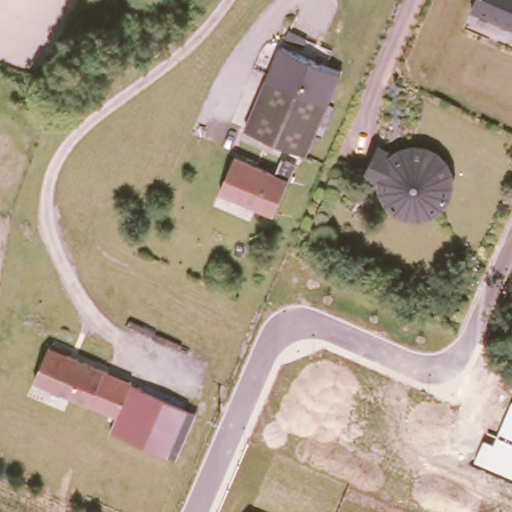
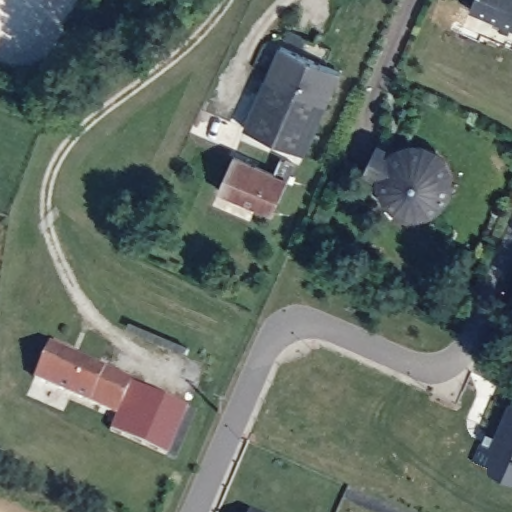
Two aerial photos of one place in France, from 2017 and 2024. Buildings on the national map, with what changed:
unchanged [(512,0),(512,31),(466,13),(472,0),(512,0)]
unchanged [(298,157),(239,131),(275,48),(335,73),(298,157)]
unchanged [(393,148),(401,143),(415,141),(430,143),(440,149),(450,159),(453,170),(453,184),(450,198),(444,208),(433,215),(418,219),(403,216),(391,211),(383,204),(376,192),(375,182),(361,175),(378,141),(393,148)]
unchanged [(217,189),(230,158),(290,183),(276,217),(217,189)]
unchanged [(47,348),(132,380),(115,418),(80,406),(81,399),(31,381),(47,348)]
unchanged [(176,459),(110,429),(115,418),(132,380),(197,413),(176,459)]
unchanged [(512,481),(472,465),(482,440),(495,446),(511,404),(512,404),(512,481)]

